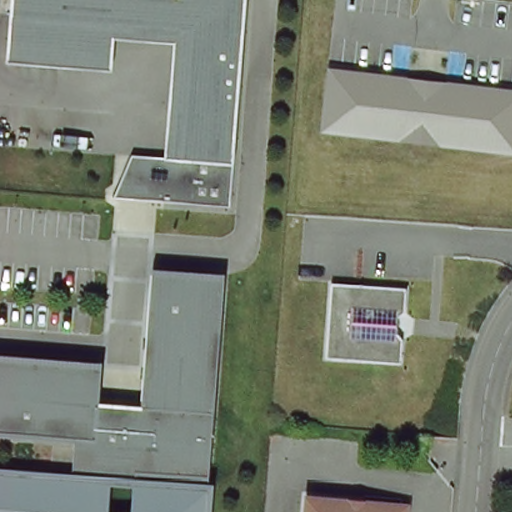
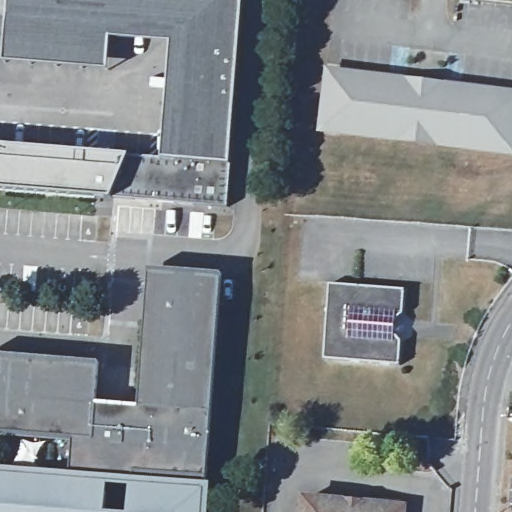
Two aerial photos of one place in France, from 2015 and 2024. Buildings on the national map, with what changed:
unchanged [(227,165),(223,209),(110,200),(113,157),(132,158),(160,160),(170,43),(109,38),(105,73),(1,66),(6,0),(241,0),(227,165)]
unchanged [(445,146),(446,141),(405,136),(405,141),(347,134),(330,132),(336,78),(353,80),(410,87),(410,92),(451,97),(452,92),(512,99),(512,154),(508,153),(445,146)]
new [(0,191),(0,148),(113,157),(110,200),(0,191)]
unchanged [(224,276),(203,512),(131,512),(133,484),(107,482),(104,512),(0,512),(0,360),(101,368),(98,403),(139,407),(152,269),(224,276)]
unchanged [(321,361),(329,285),(402,293),(395,366),(321,361)]
unchanged [(404,504),(403,512),(303,512),(305,495),(404,504)]

